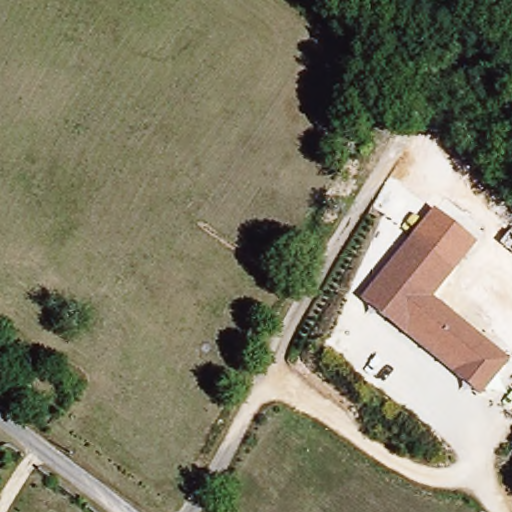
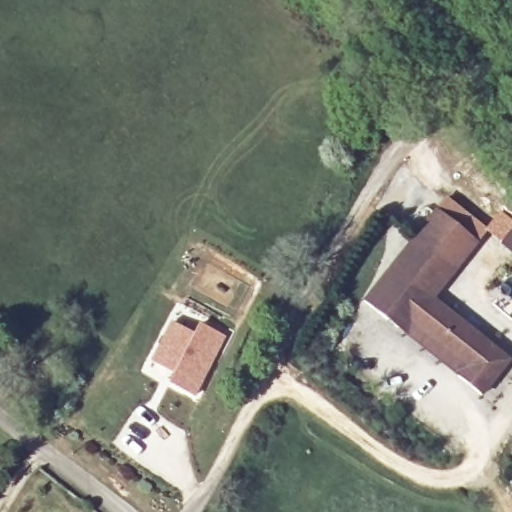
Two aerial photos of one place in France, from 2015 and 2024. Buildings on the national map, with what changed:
unchanged [(477,242),(437,297),(489,337),(487,339),(512,356),(512,359),(482,396),(457,375),(360,298),(435,209),(477,242)]
new [(172,321),(192,332),(198,321),(227,336),(195,397),(167,383),(172,374),(149,362),(172,321)]

